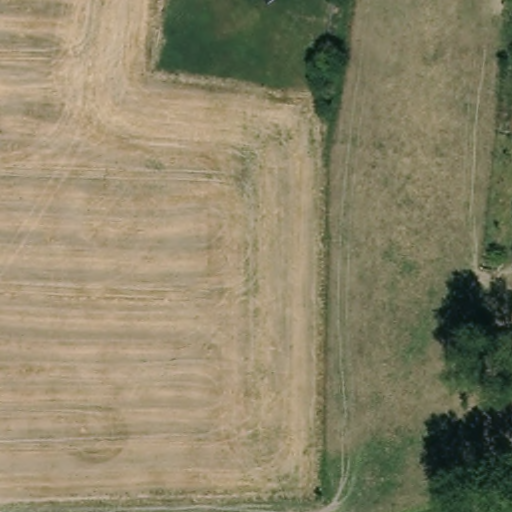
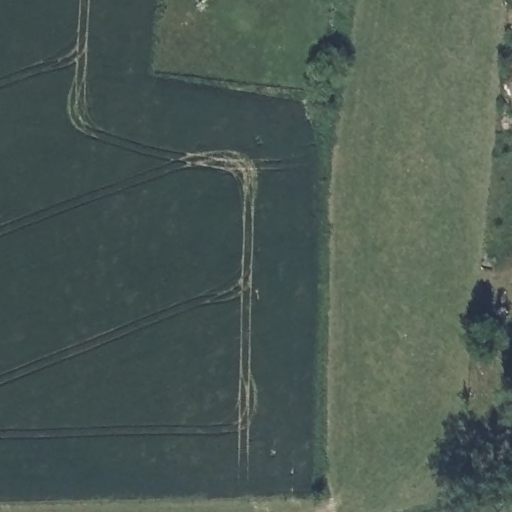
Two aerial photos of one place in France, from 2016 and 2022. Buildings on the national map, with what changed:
[]

